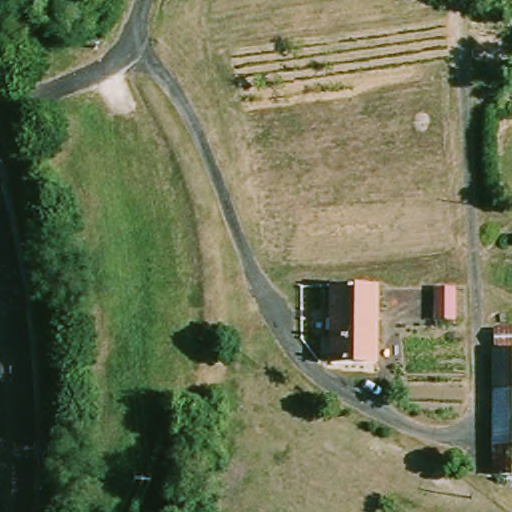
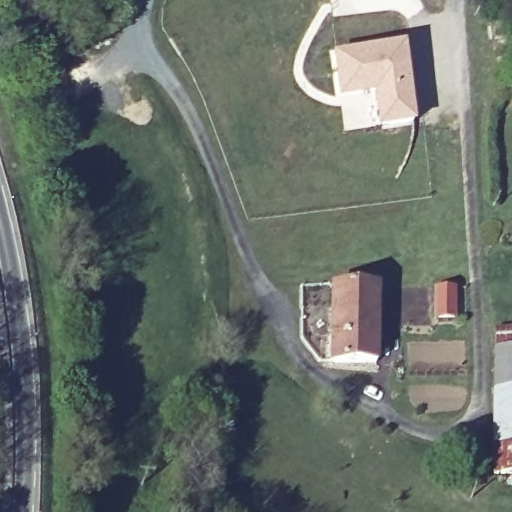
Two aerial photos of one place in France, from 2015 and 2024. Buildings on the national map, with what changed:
new [(401,46),(411,122),(378,127),(373,93),(339,98),(333,56),(401,46)]
unchanged [(377,288),(376,364),(331,364),(332,287),(377,288)]
unchanged [(455,320),(436,320),(435,289),(455,289),(455,320)]
unchanged [(512,334),(512,351),(497,351),(495,335),(512,334)]
unchanged [(494,481),(494,356),(512,357),(512,481),(494,481)]

